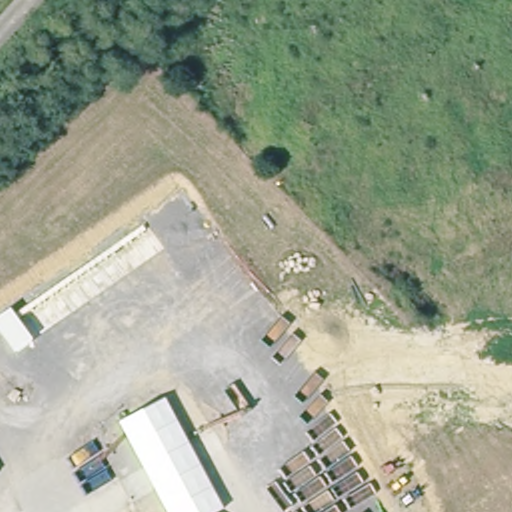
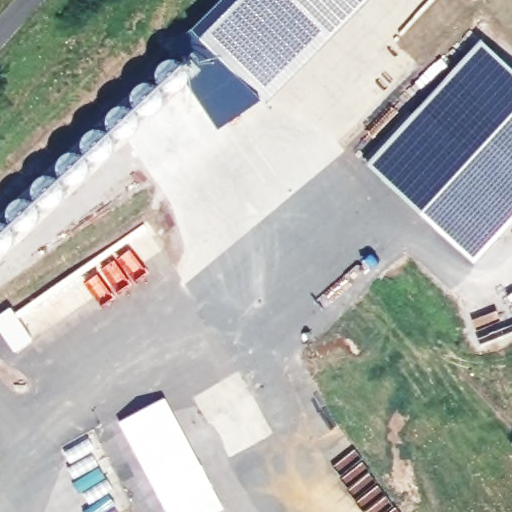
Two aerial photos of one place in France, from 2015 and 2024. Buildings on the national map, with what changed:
new [(266,103),(262,100),(219,129),(192,88),(189,82),(181,62),(173,44),(192,29),(221,0),(368,0),(266,103)]
new [(477,46),(512,78),(512,218),(469,265),(364,168),(477,46)]
new [(0,260),(0,214),(160,64),(170,59),(181,62),(189,82),(0,260)]
new [(218,512),(168,512),(118,423),(165,397),(224,509),(218,512)]

